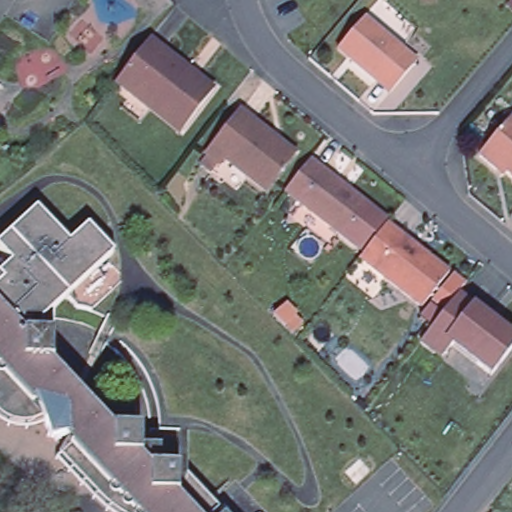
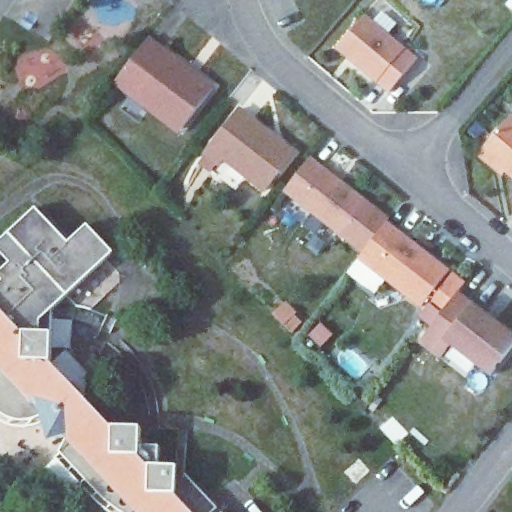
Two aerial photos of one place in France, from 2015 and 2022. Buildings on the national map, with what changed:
unchanged [(366,7),(419,51),(391,84),(339,40),(366,7)]
unchanged [(127,92),(113,81),(146,37),(211,87),(180,126),(176,131),(127,92)]
unchanged [(201,161),(208,152),(206,151),(241,106),(294,149),(264,187),(224,156),(219,162),(213,170),(201,161)]
unchanged [(483,150),(512,116),(512,168),(511,167),(507,171),(500,165),(483,150)]
unchanged [(312,155),(368,199),(342,231),(286,188),(312,155)]
unchanged [(54,302),(49,302),(18,302),(2,280),(0,278),(0,271),(9,262),(0,253),(0,241),(37,207),(69,241),(87,223),(114,252),(109,256),(121,271),(68,320),(58,305),(54,307),(54,302)]
unchanged [(387,220),(449,268),(422,303),(360,255),(387,220)]
unchanged [(498,325),(501,321),(512,331),(512,349),(492,373),(454,342),(442,356),(422,340),(446,309),(434,298),(442,288),(455,272),(467,282),(461,290),(487,312),(485,315),(498,325)]
unchanged [(48,363),(108,426),(137,428),(136,445),(156,446),(155,465),(174,466),(173,472),(180,473),(213,507),(207,512),(118,512),(113,509),(104,503),(82,480),(55,451),(63,435),(46,441),(38,416),(28,420),(20,422),(13,421),(4,420),(0,416),(0,283),(18,302),(49,302),(49,310),(48,363)]
unchanged [(278,302),(289,314),(277,325),(266,313),(278,302)]

